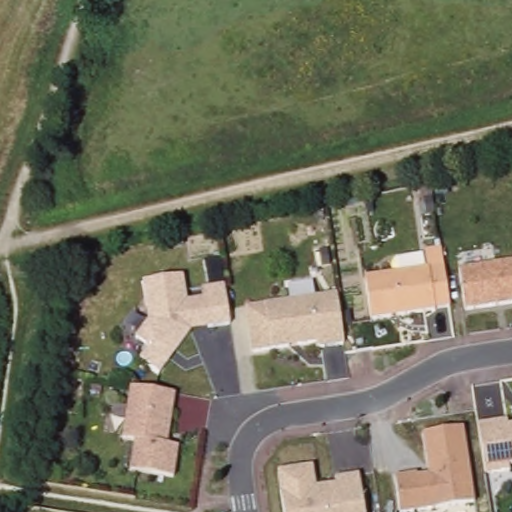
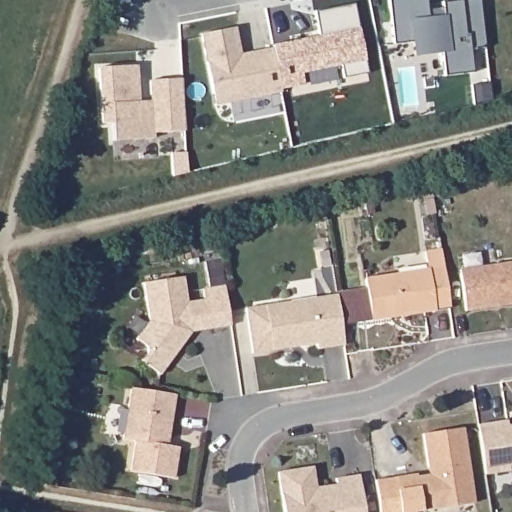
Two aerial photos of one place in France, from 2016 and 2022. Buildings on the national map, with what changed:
new [(432,18),(447,17),(445,2),(462,0),(484,0),(489,48),(475,50),(477,73),(448,77),(445,53),(417,57),(415,43),(396,45),(391,0),(430,0),(432,18)]
new [(322,37),(317,12),(357,4),(371,74),(346,79),(344,66),(305,73),(307,85),(284,90),(276,48),(275,46),(322,37)]
new [(216,95),(204,35),(238,28),(244,55),(276,48),(284,90),(285,93),(234,103),(218,106),(216,95)]
new [(140,65),(142,102),(154,101),(152,81),(185,79),(188,131),(156,133),(157,138),(116,141),(114,123),(104,124),(101,68),(140,65)]
unchanged [(426,271),(424,253),(442,250),(452,311),(373,322),(367,279),(426,271)]
unchanged [(512,263),(512,305),(468,311),(463,269),(512,263)]
unchanged [(186,279),(189,301),(205,299),(205,289),(226,287),(232,327),(193,331),(161,376),(143,360),(152,349),(138,342),(150,323),(145,283),(186,279)]
unchanged [(338,296),(345,349),(321,351),(320,346),(252,355),(248,308),(338,296)]
unchanged [(177,395),(170,448),(179,450),(175,480),(132,474),(135,442),(125,441),(131,389),(177,395)]
unchanged [(509,422),(510,426),(512,426),(512,466),(511,466),(511,473),(488,475),(482,426),(509,422)]
unchanged [(427,473),(423,434),(463,429),(474,503),(416,512),(399,512),(395,478),(427,473)]
unchanged [(316,489),(337,486),(336,479),(361,476),(365,512),(287,512),(282,473),(315,469),(316,489)]

